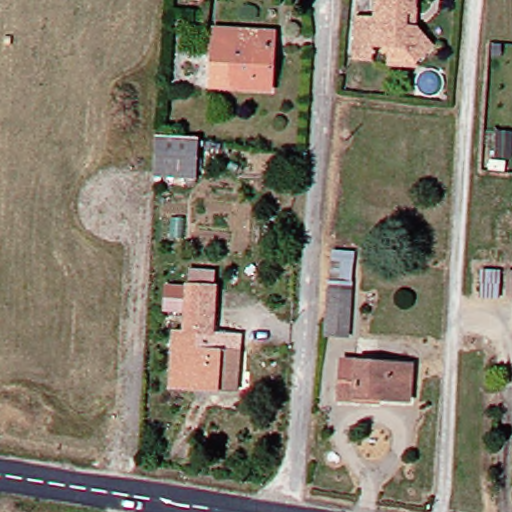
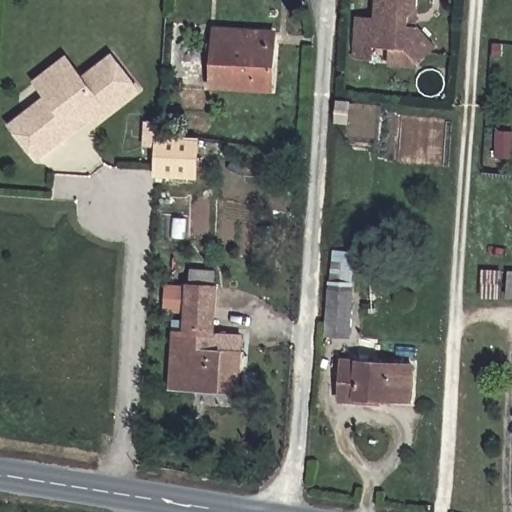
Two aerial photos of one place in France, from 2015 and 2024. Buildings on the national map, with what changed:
unchanged [(380,67),(381,50),(367,49),(366,60),(347,59),(349,16),(370,16),(371,0),(412,0),(410,27),(429,48),(408,62),(407,69),(380,67)]
unchanged [(259,32),(259,42),(277,44),(273,87),(201,82),(204,27),(259,32)]
new [(43,96),(32,82),(66,55),(82,75),(111,54),(139,90),(96,126),(92,119),(73,133),(37,162),(7,125),(43,96)]
unchanged [(512,159),(490,157),(492,129),(512,130),(512,159)]
unchanged [(189,185),(153,183),(154,150),(191,152),(189,185)]
unchanged [(503,272),(512,272),(512,296),(503,296),(503,272)]
unchanged [(185,289),(190,289),(190,273),(214,274),(213,290),(219,291),(216,322),(183,321),(185,289)]
unchanged [(348,277),(344,316),(322,313),(325,275),(348,277)]
unchanged [(228,397),(166,392),(169,335),(183,336),(183,321),(216,322),(215,340),(229,338),(229,356),(233,357),(228,397)]
unchanged [(407,402),(378,400),(377,406),(336,403),(337,376),(353,376),(354,365),(410,367),(407,402)]

